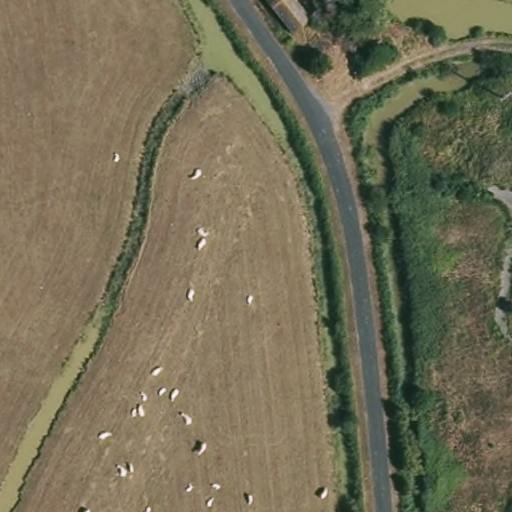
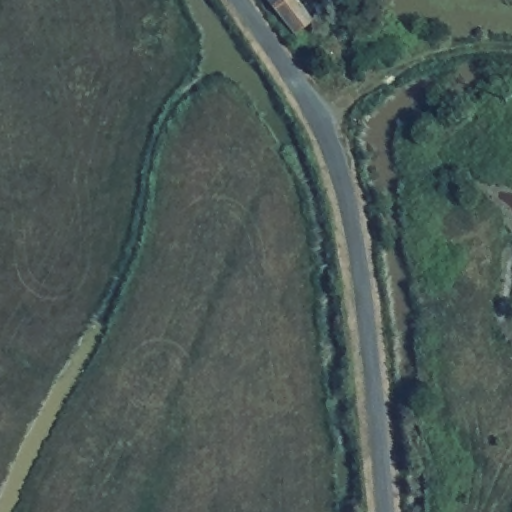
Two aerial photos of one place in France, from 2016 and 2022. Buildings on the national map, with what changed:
unchanged [(310,21),(286,40),(255,0),(292,0),(310,21)]

